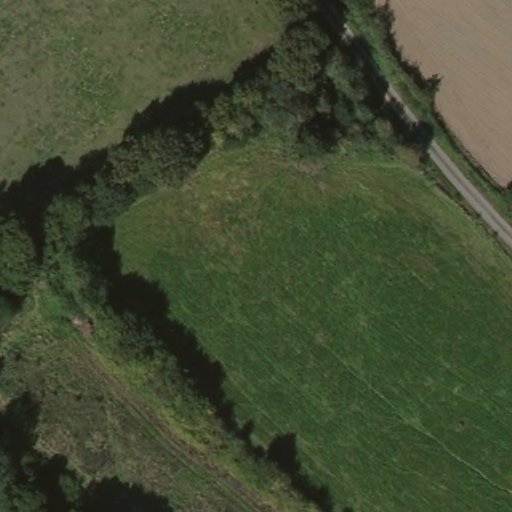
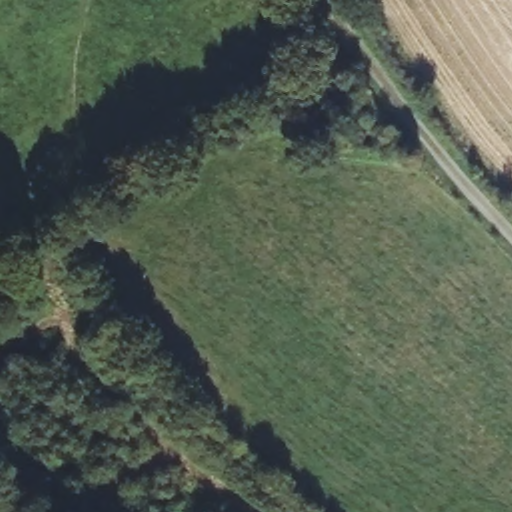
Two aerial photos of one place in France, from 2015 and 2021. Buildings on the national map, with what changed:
[]

